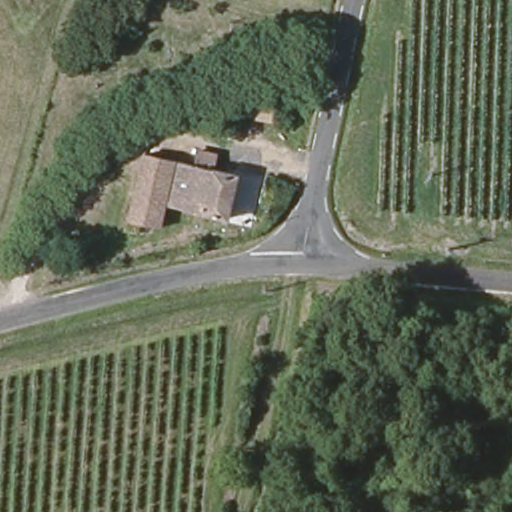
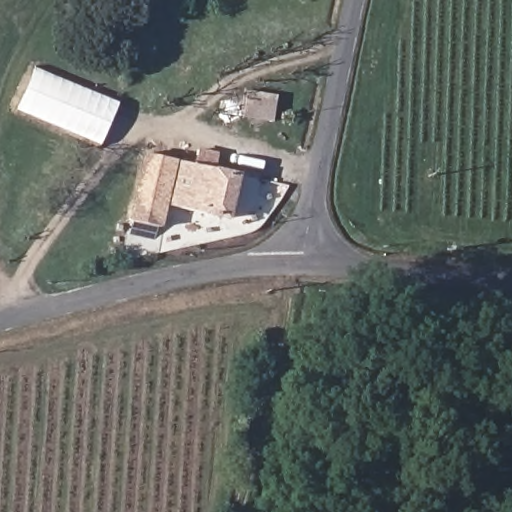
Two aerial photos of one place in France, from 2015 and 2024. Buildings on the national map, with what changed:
new [(112,101),(110,105),(117,107),(103,144),(17,111),(35,70),(112,101)]
unchanged [(232,171),(221,217),(173,206),(169,225),(141,220),(138,234),(125,231),(143,150),(232,171)]

